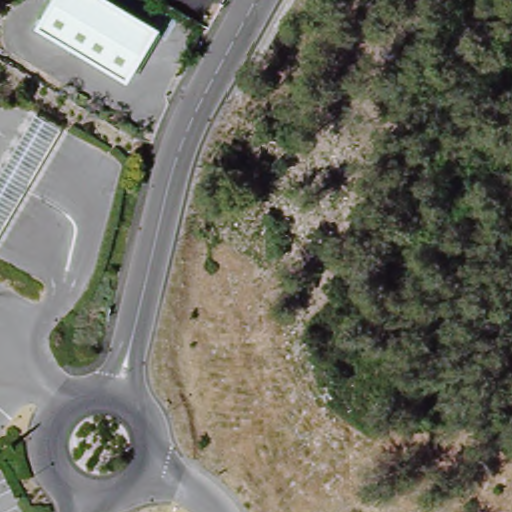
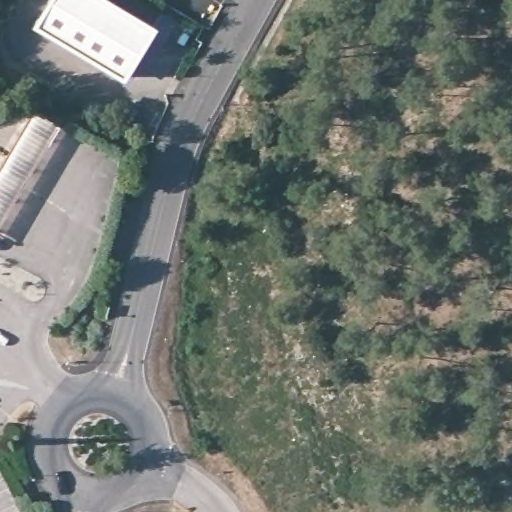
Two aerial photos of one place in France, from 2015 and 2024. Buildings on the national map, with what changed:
unchanged [(118,81),(31,29),(48,0),(94,0),(147,31),(118,81)]
unchanged [(25,106),(50,121),(0,207),(0,148),(25,106)]

